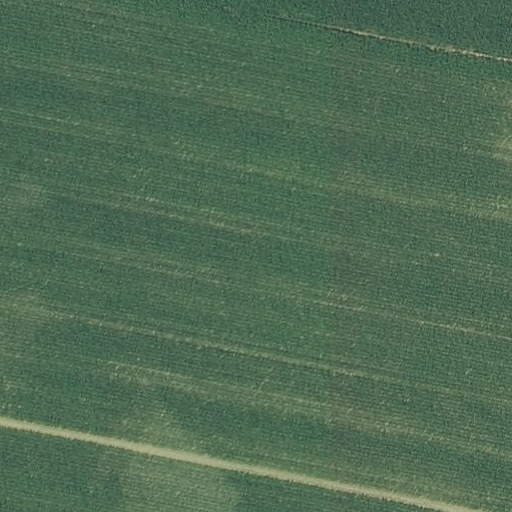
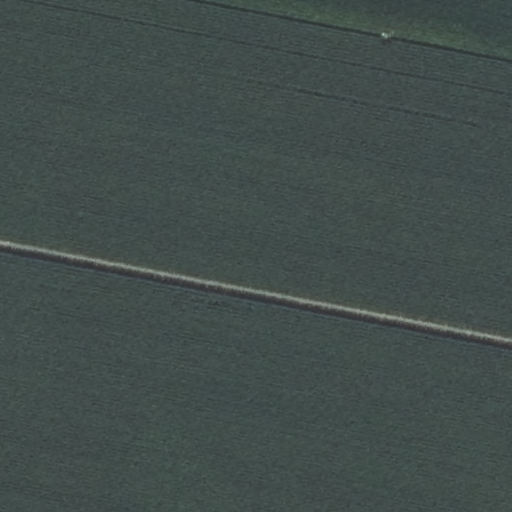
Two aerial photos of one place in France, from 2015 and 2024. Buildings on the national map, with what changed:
[]

